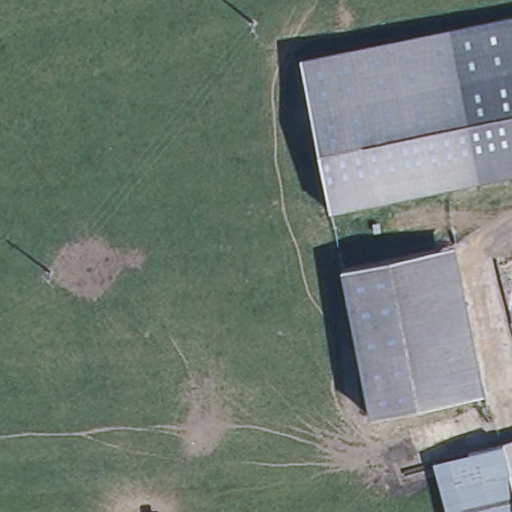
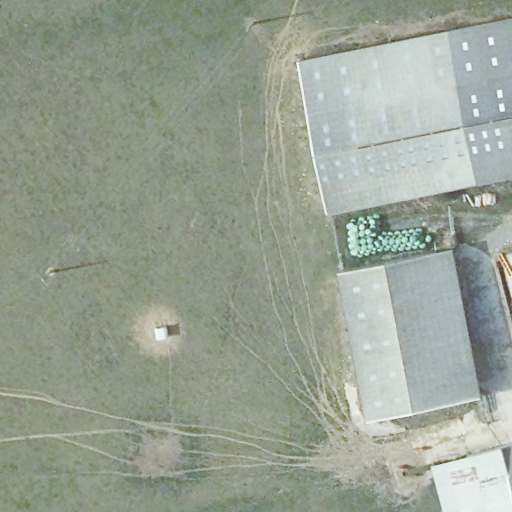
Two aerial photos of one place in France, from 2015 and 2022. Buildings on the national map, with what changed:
unchanged [(480,23),(512,17),(512,175),(474,182),(445,30),(480,23)]
unchanged [(445,30),(474,182),(325,209),(298,60),(445,30)]
unchanged [(455,242),(490,390),(367,420),(335,271),(455,242)]
unchanged [(512,444),(512,512),(445,512),(432,465),(512,444)]

